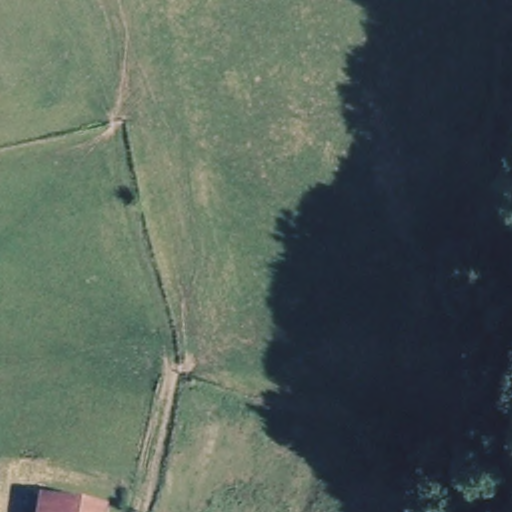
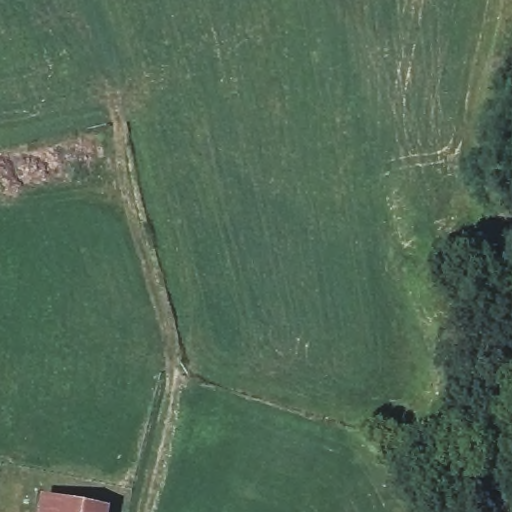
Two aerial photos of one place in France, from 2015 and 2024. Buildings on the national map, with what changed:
unchanged [(107,503),(106,512),(39,512),(41,492),(107,503)]

